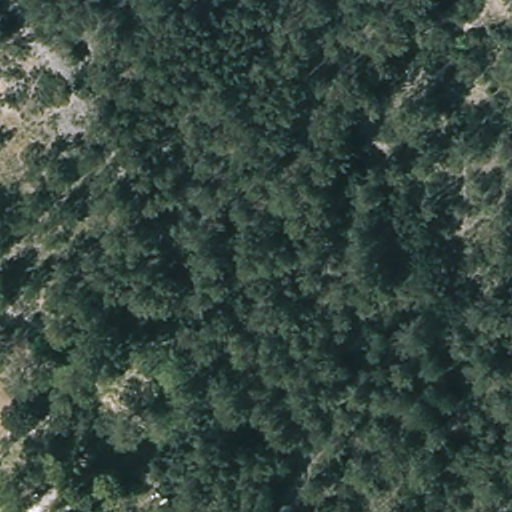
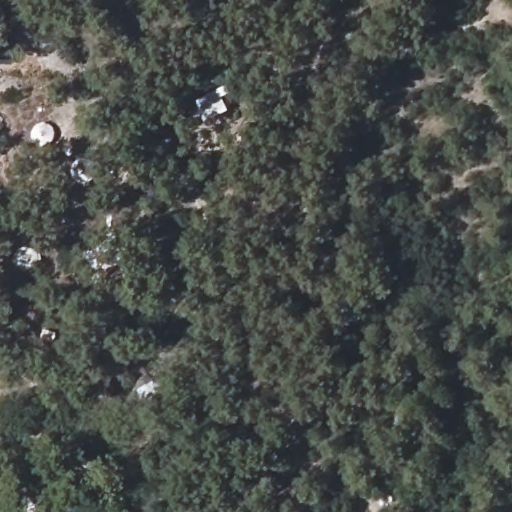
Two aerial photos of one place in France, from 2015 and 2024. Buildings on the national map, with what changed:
unchanged [(73,498),(48,512),(38,495),(62,480),(73,498)]

